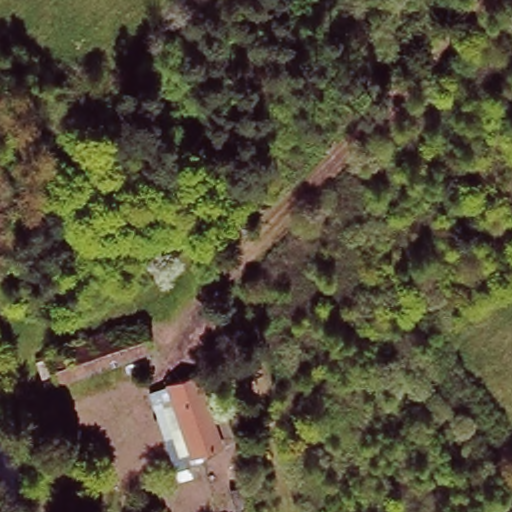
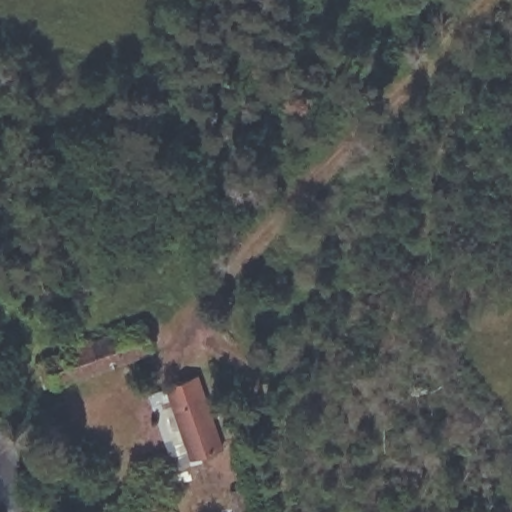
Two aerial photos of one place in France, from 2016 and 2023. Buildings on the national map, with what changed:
unchanged [(143,322),(152,354),(55,384),(46,352),(143,322)]
unchanged [(200,371),(224,445),(195,454),(170,381),(200,371)]

